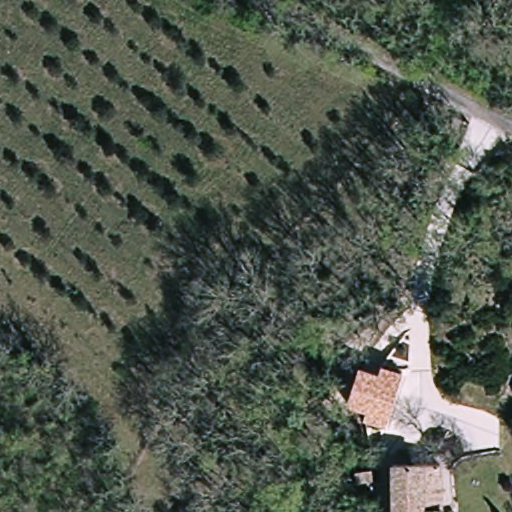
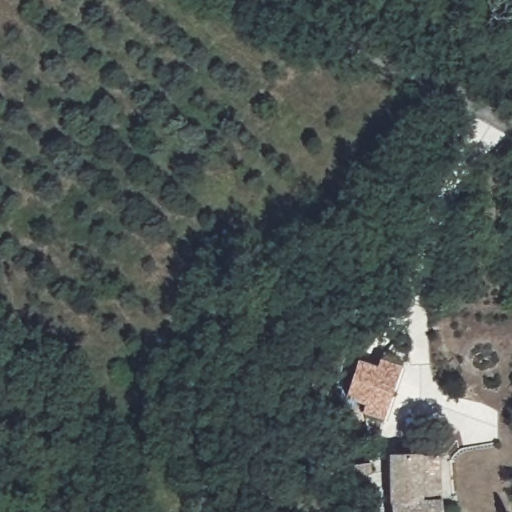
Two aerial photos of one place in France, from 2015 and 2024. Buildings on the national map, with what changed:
unchanged [(383,421),(362,415),(364,406),(345,400),(357,362),(377,369),(380,361),(400,367),(383,421)]
unchanged [(420,460),(438,458),(440,506),(440,512),(389,512),(387,462),(420,460)]

